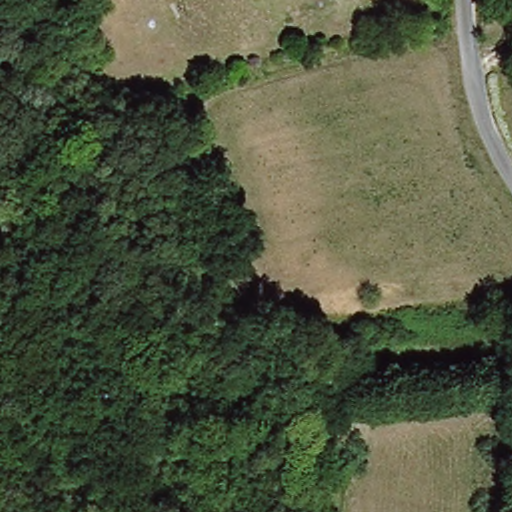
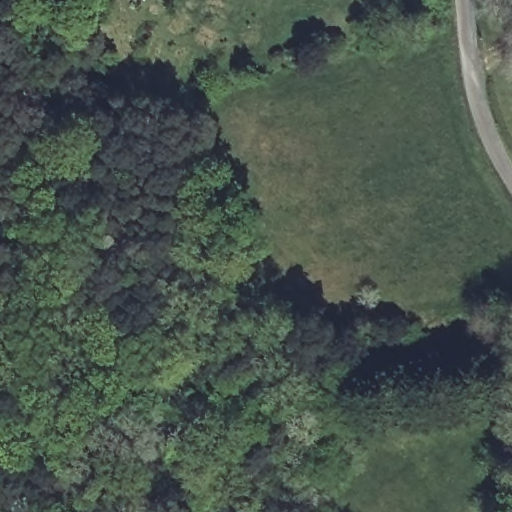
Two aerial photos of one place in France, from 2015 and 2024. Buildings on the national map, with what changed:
[]

